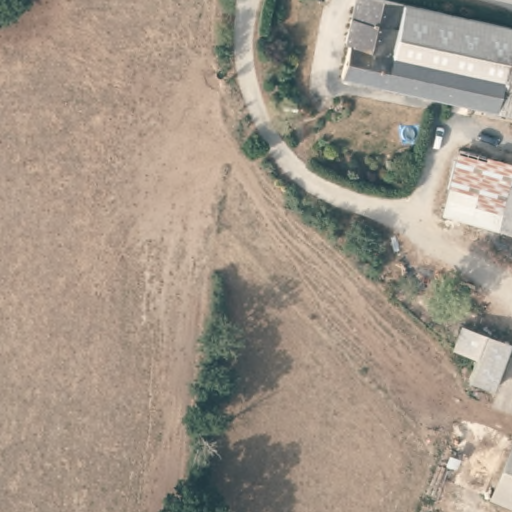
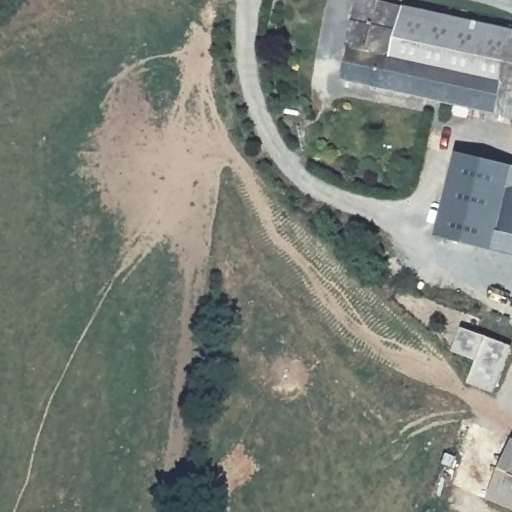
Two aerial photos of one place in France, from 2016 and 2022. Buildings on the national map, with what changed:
unchanged [(342,72),(351,32),(347,31),(355,0),(409,0),(512,23),(509,39),(512,39),(512,116),(342,72)]
unchanged [(442,221),(462,152),(512,165),(512,239),(442,221)]
unchanged [(477,357),(450,346),(458,322),(512,343),(512,345),(497,393),(467,381),(477,357)]
unchanged [(484,493),(509,435),(512,436),(512,504),(484,493)]

